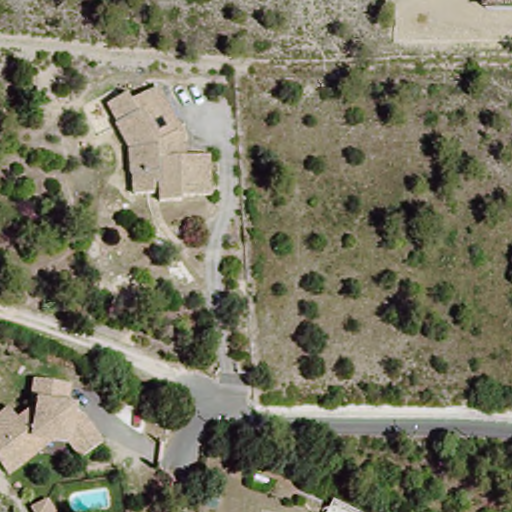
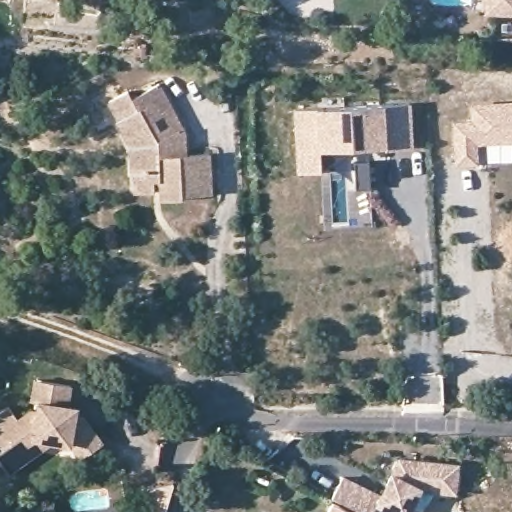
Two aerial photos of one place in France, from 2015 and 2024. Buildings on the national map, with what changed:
unchanged [(512,12),(483,11),(484,0),(512,0),(512,12)]
unchanged [(181,132),(182,161),(205,161),(205,197),(175,197),(175,201),(157,201),(157,190),(145,189),(144,195),(129,192),(130,177),(123,176),(125,149),(105,102),(127,94),(129,100),(161,87),(181,132)]
new [(471,106),(512,105),(512,143),(472,144),(472,164),(453,164),(453,123),(471,123),(471,106)]
new [(321,172),(296,172),(296,106),(413,106),(413,152),(385,152),(385,150),(321,150),(321,172)]
new [(369,162),(369,190),(353,190),(353,162),(369,162)]
unchanged [(13,456),(0,443),(0,436),(33,407),(27,404),(28,382),(65,385),(64,407),(71,410),(68,443),(53,441),(24,467),(13,456)]
new [(386,493),(405,457),(463,462),(460,490),(425,486),(411,512),(405,512),(382,500),(377,512),(373,512),(337,493),(348,473),(386,493)]
new [(368,512),(329,512),(338,494),(369,510),(368,512)]
new [(56,499),(71,511),(71,512),(44,512),(41,507),(56,499)]

